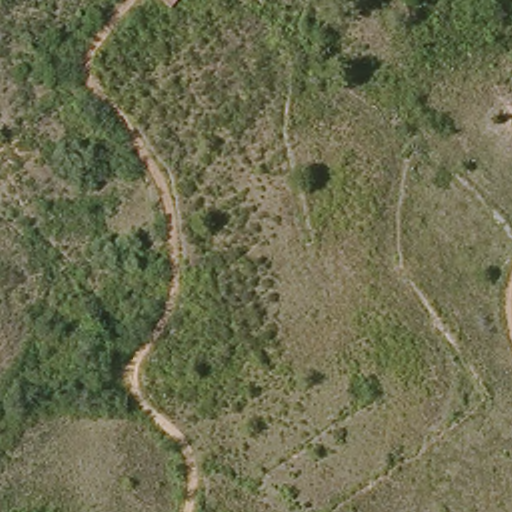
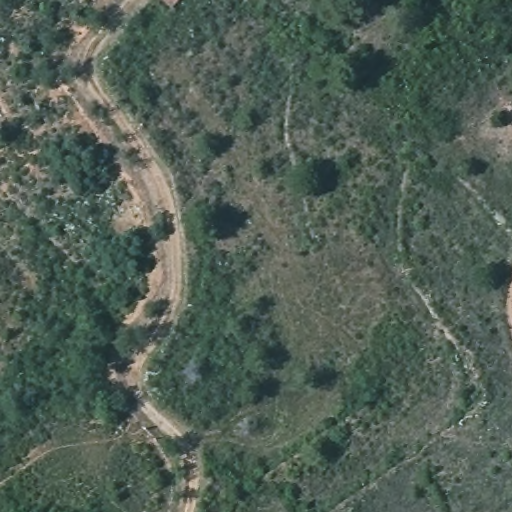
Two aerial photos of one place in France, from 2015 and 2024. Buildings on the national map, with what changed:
unchanged [(168,11),(156,0),(179,0),(168,11)]

